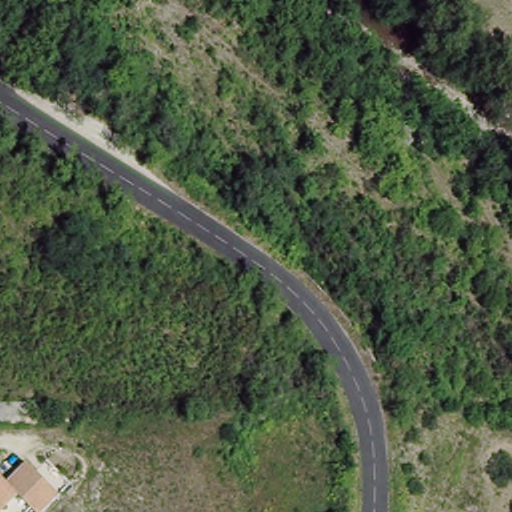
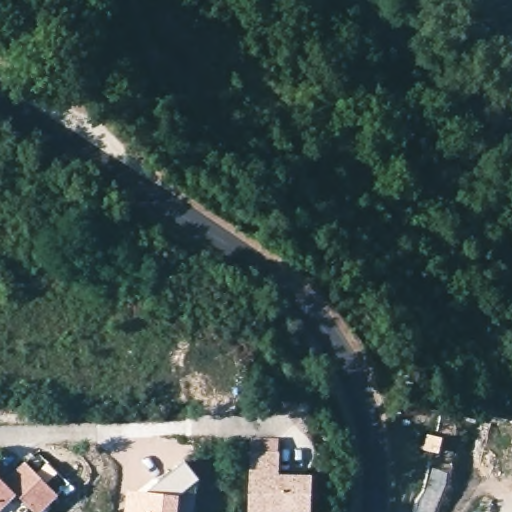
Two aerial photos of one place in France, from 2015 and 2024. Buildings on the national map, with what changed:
unchanged [(401,148),(397,144),(387,135),(401,121),(414,133),(404,144),(401,148)]
new [(257,478),(257,458),(295,459),(295,479),(315,480),(314,512),(295,512),(277,512),(256,512),(256,511),(257,478)]
new [(180,512),(125,512),(128,491),(150,494),(178,465),(200,480),(181,497),(180,512)]
unchanged [(6,483),(27,468),(61,497),(45,512),(37,512),(18,496),(3,512),(0,512),(0,476),(2,479),(6,483)]

